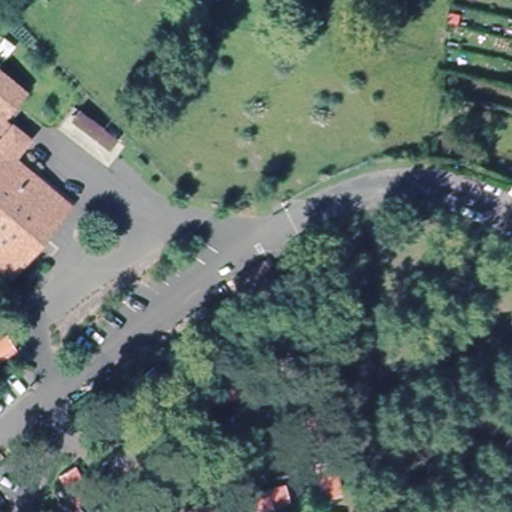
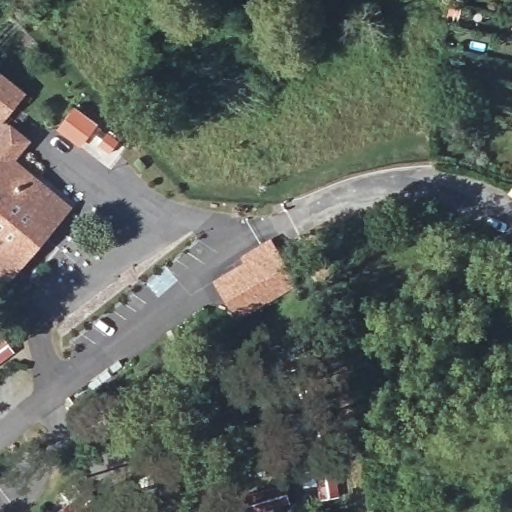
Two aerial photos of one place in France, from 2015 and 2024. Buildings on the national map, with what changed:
unchanged [(7,115),(32,136),(20,150),(0,133),(0,72),(25,94),(7,115)]
unchanged [(121,140),(112,152),(72,121),(81,109),(121,140)]
unchanged [(72,207),(13,273),(0,262),(0,144),(72,207)]
new [(241,260),(239,256),(271,236),(296,286),(237,321),(211,280),(241,260)]

